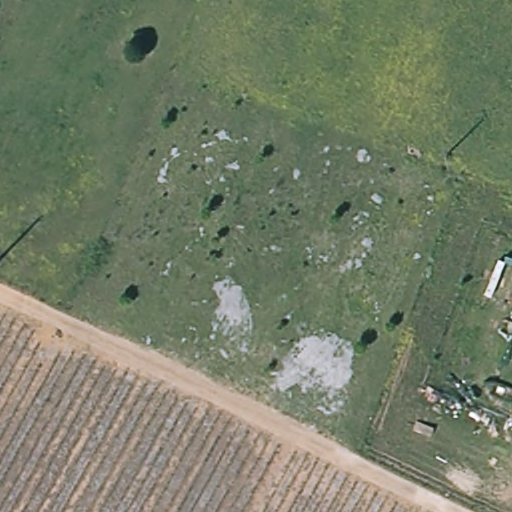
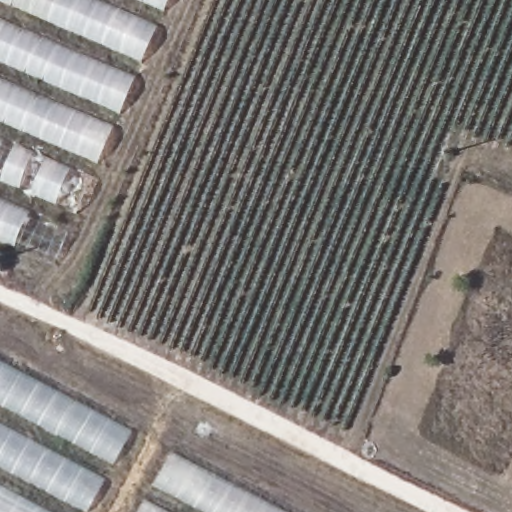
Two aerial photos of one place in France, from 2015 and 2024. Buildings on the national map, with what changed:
new [(0,0),(166,0),(54,265),(0,242),(0,0)]
new [(90,512),(0,512),(0,359),(138,429),(90,512)]
new [(172,449),(296,512),(138,512),(172,449)]

